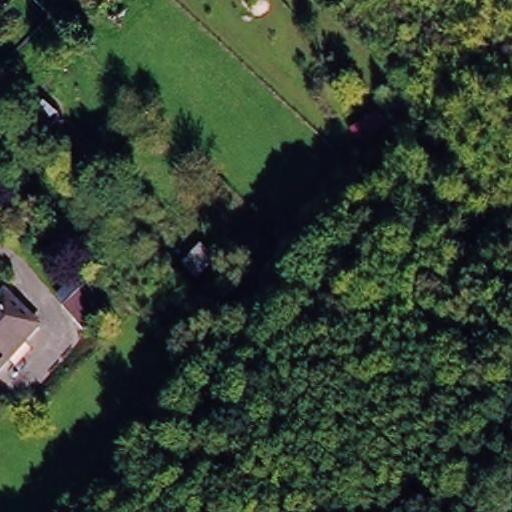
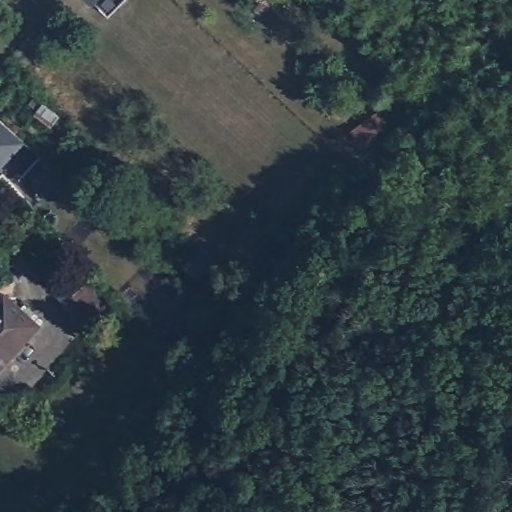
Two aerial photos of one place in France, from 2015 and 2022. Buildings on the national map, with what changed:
unchanged [(61,117),(52,128),(36,114),(45,104),(61,117)]
new [(0,174),(0,120),(27,146),(0,174)]
unchanged [(217,262),(199,280),(185,266),(204,248),(217,262)]
unchanged [(54,302),(78,280),(97,301),(79,319),(74,323),(54,302)]
unchanged [(12,297),(39,321),(0,364),(0,299),(7,292),(12,297)]

